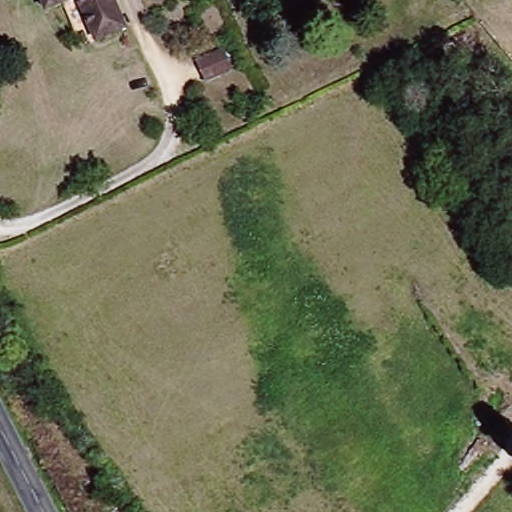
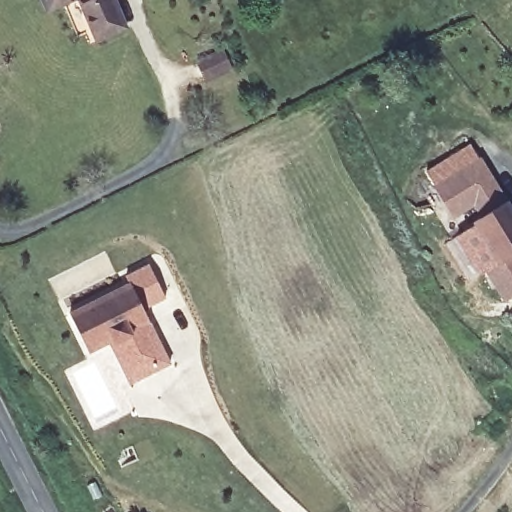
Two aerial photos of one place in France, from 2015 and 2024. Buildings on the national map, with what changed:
unchanged [(47,0),(77,0),(51,11),(47,0)]
unchanged [(101,40),(85,0),(119,0),(131,27),(101,40)]
unchanged [(204,81),(196,63),(223,51),(232,68),(204,81)]
new [(482,157),(508,200),(481,217),(474,207),(453,219),(434,187),(482,157)]
new [(512,207),(512,255),(498,263),(473,222),(481,217),(508,200),(512,207)]
new [(505,303),(486,272),(498,263),(512,255),(512,299),(505,303)]
new [(110,343),(90,353),(70,314),(129,283),(126,277),(149,265),(166,298),(144,310),(171,364),(141,379),(131,385),(110,343)]

